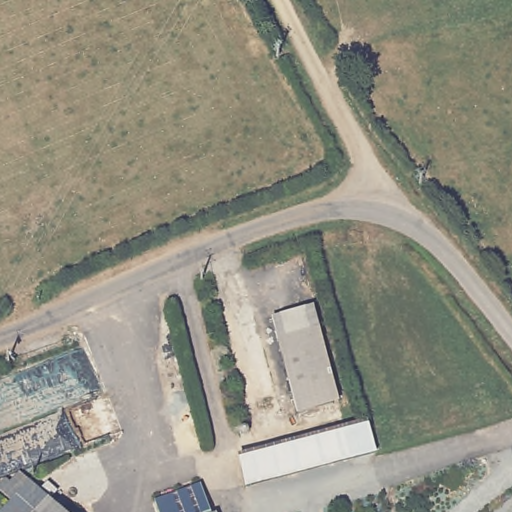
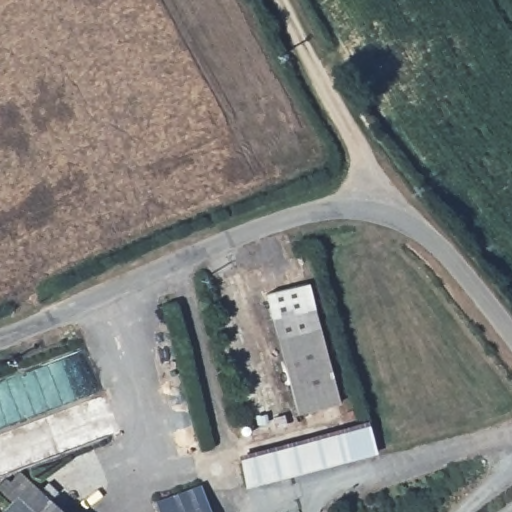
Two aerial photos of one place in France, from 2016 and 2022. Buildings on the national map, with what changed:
unchanged [(317,315),(337,392),(296,402),(275,325),(317,315)]
unchanged [(343,470),(260,486),(245,491),(237,457),(363,426),(370,424),(379,459),(374,461),(343,470)]
unchanged [(7,512),(14,505),(0,491),(8,481),(14,483),(22,475),(53,504),(45,512),(7,512)]
unchanged [(198,482),(208,508),(196,512),(156,512),(151,500),(198,482)]
unchanged [(45,512),(53,504),(61,512),(45,512)]
unchanged [(208,512),(196,512),(208,508),(208,512)]

